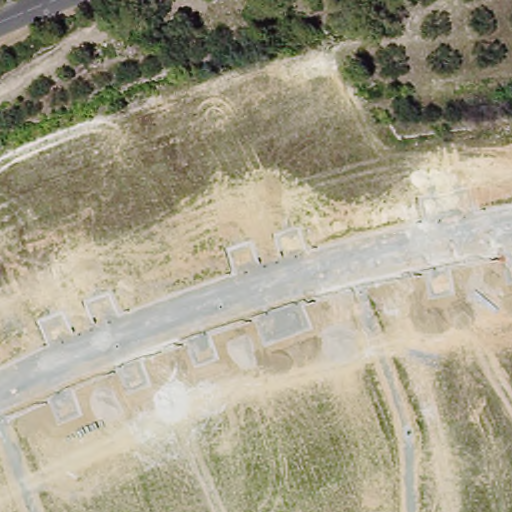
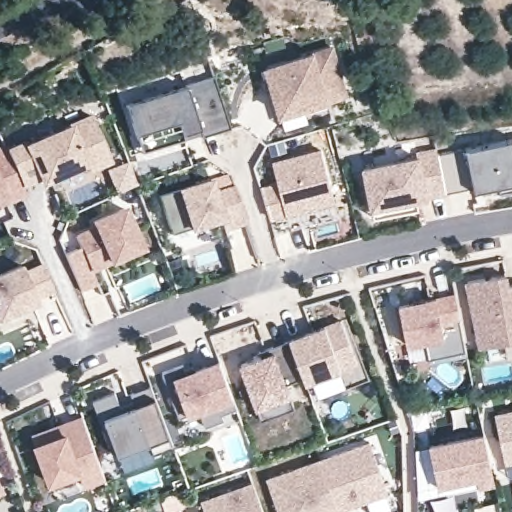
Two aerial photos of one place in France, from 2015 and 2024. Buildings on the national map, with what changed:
new [(265,66),(313,53),(334,47),(348,96),(328,101),(281,116),(265,66)]
new [(203,138),(197,129),(182,134),(183,139),(140,150),(137,141),(128,105),(186,87),(184,85),(213,78),(228,128),(203,138)]
new [(5,145),(7,148),(25,140),(27,143),(72,124),(70,123),(92,114),(112,163),(90,173),(90,164),(41,186),(38,179),(23,185),(26,195),(8,204),(8,200),(0,204),(0,147),(5,145)]
new [(500,185),(477,190),(446,195),(439,156),(467,151),(512,141),(512,191),(501,193),(500,185)]
new [(277,182),(271,161),(317,146),(333,197),(269,217),(260,187),(277,182)]
new [(427,194),(428,199),(416,200),(417,209),(375,215),(374,207),(370,208),(362,168),(419,156),(415,151),(437,148),(446,195),(427,194)]
new [(225,230),(225,220),(189,229),(188,225),(171,234),(160,197),(177,188),(212,178),(215,189),(233,185),(243,224),(225,230)]
new [(80,292),(65,254),(81,247),(75,233),(92,225),(90,220),(124,206),(143,250),(109,263),(92,271),(98,284),(80,292)]
new [(20,265),(23,272),(43,264),(52,292),(34,299),(37,304),(0,319),(0,274),(20,265)]
unchanged [(468,282),(506,277),(508,285),(512,285),(512,344),(475,350),(468,282)]
new [(461,329),(452,332),(451,324),(440,325),(443,337),(407,344),(399,304),(435,298),(454,294),(459,321),(461,329)]
new [(357,366),(341,369),(306,383),(289,338),(324,324),(340,320),(357,366)]
new [(269,348),(284,391),(249,404),(233,361),(269,348)]
new [(205,426),(202,409),(187,413),(178,417),(162,372),(184,366),(188,370),(219,359),(233,399),(235,408),(221,414),(223,420),(205,426)]
new [(153,453),(152,443),(118,454),(105,419),(102,421),(94,399),(114,393),(123,410),(135,406),(129,394),(152,386),(174,446),(153,453)]
new [(494,413),(512,409),(512,461),(506,463),(494,413)]
new [(34,444),(37,443),(32,433),(82,415),(106,480),(85,488),(82,474),(49,486),(34,444)]
new [(430,445),(483,434),(492,476),(494,487),(479,490),(477,479),(438,487),(430,445)]
new [(335,510),(336,512),(279,512),(267,479),(317,460),(370,442),(388,494),(335,510)]
new [(201,501),(252,482),(263,512),(205,512),(201,501)]
new [(2,494),(0,495),(0,489),(2,494)]

